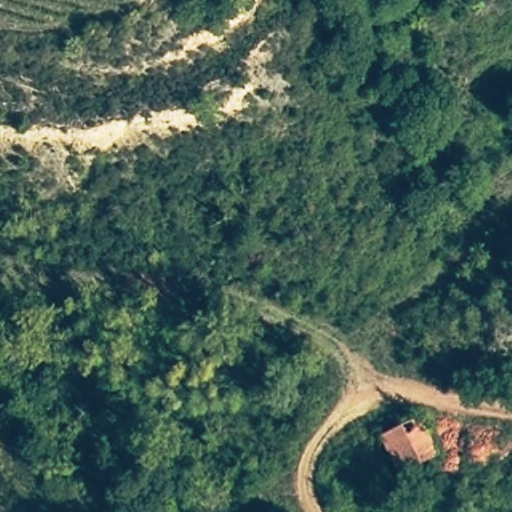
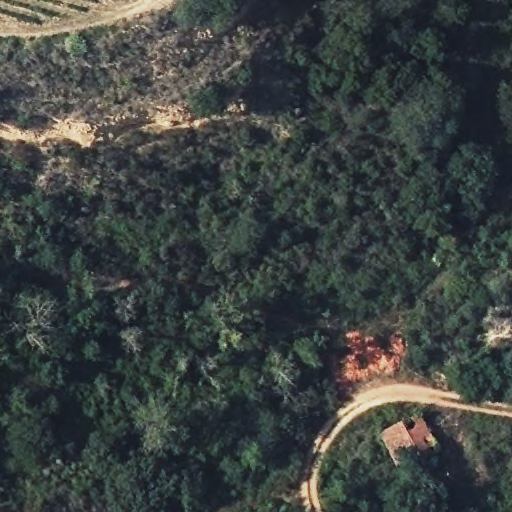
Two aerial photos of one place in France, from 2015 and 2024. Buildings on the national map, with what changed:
unchanged [(395,476),(377,437),(419,417),(439,456),(395,476)]

